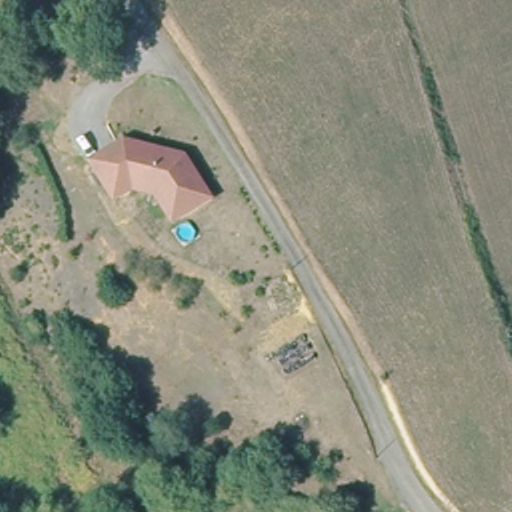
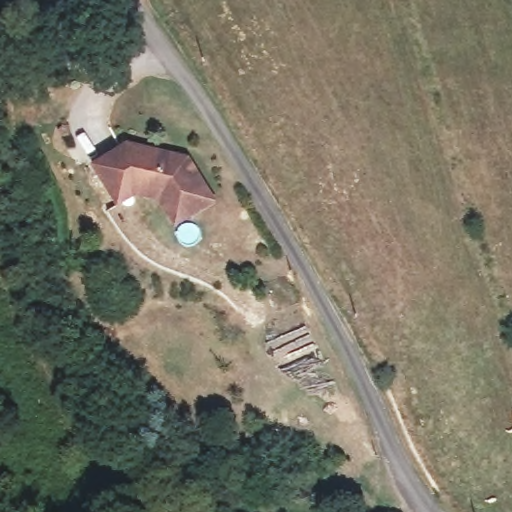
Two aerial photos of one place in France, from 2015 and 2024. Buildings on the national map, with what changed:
unchanged [(157,197),(136,193),(113,204),(109,197),(90,166),(118,148),(123,144),(174,149),(191,152),(218,196),(197,207),(193,202),(175,214),(168,217),(157,197)]

